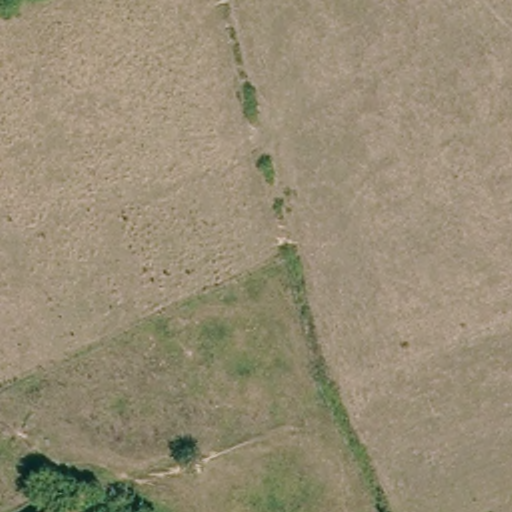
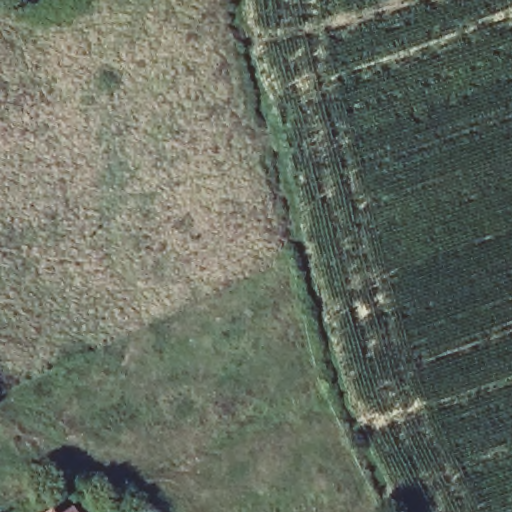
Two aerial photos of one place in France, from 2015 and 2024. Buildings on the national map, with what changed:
[]

